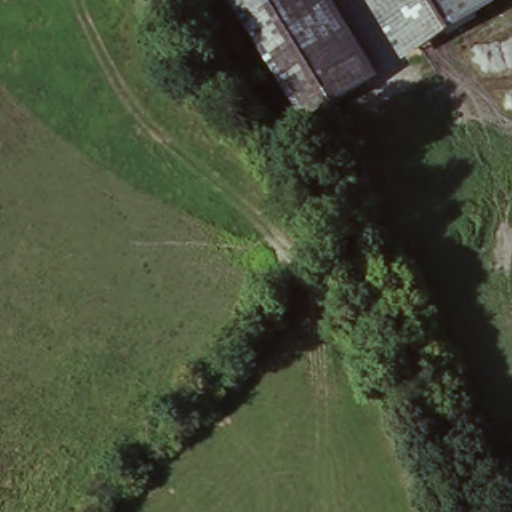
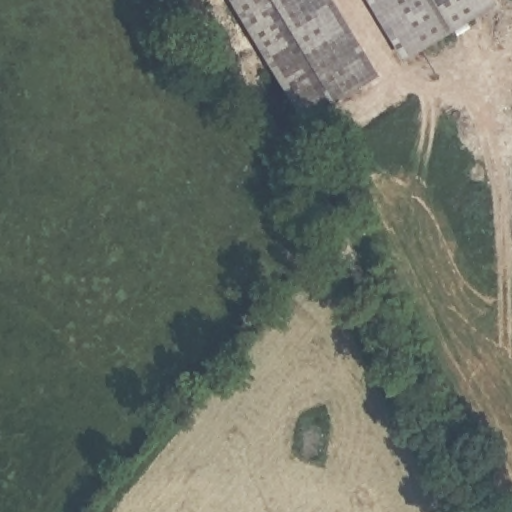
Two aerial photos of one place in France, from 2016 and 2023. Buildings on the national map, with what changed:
unchanged [(298,125),(224,0),(327,0),(371,80),(298,125)]
unchanged [(401,64),(362,0),(489,0),(493,9),(401,64)]

